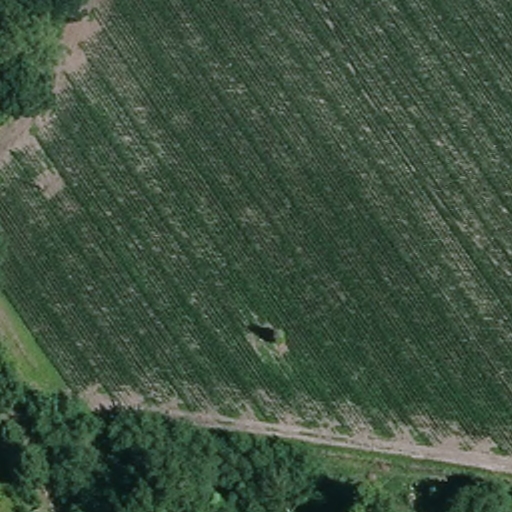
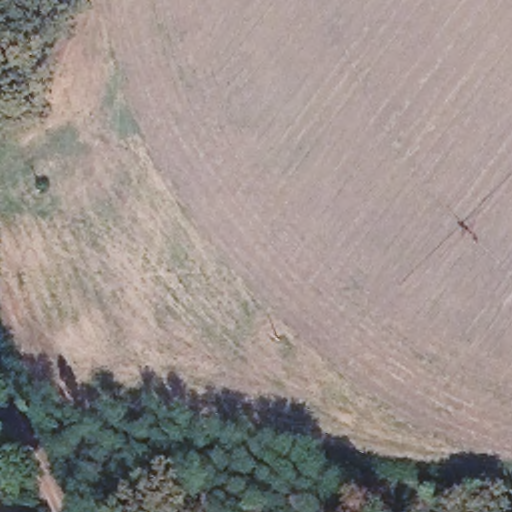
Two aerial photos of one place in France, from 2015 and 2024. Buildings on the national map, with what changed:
[]

